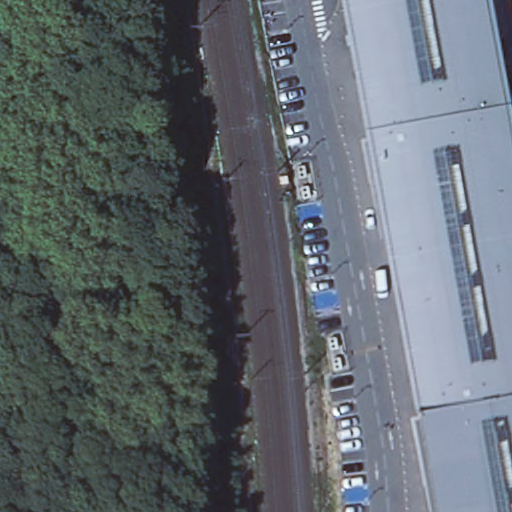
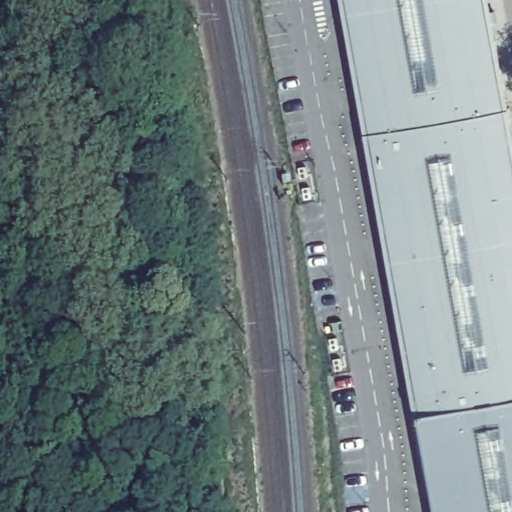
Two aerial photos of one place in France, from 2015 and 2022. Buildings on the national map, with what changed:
unchanged [(512,110),(512,512),(442,512),(426,422),(422,422),(420,414),(423,413),(375,143),(372,144),(370,136),(373,135),(349,0),(492,0),(512,110)]

